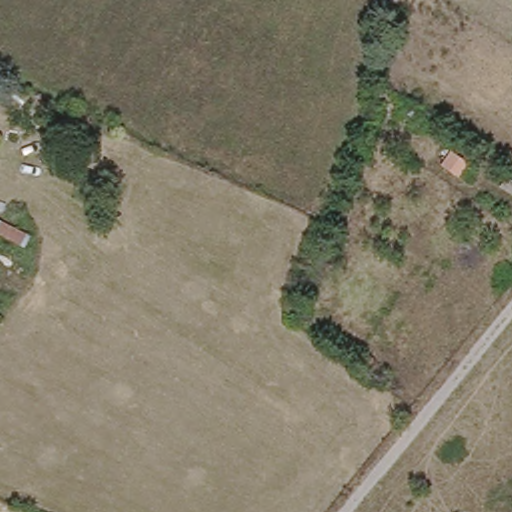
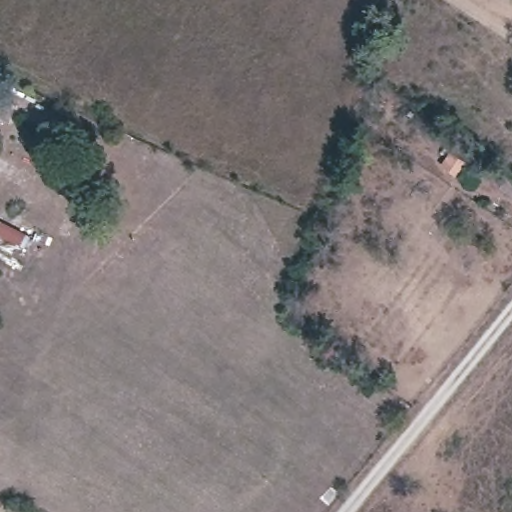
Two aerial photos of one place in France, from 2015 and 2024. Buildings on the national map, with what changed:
unchanged [(468,162),(459,175),(442,164),(451,150),(468,162)]
unchanged [(512,193),(499,185),(506,175),(512,179),(512,193)]

